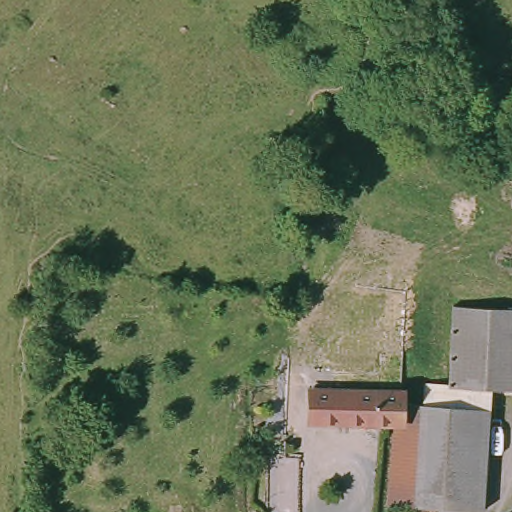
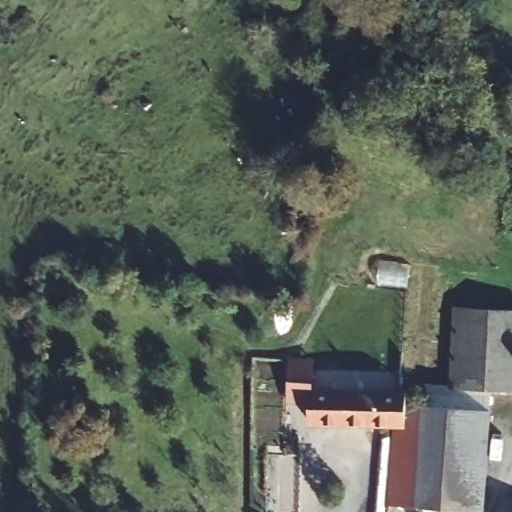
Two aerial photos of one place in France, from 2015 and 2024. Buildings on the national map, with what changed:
unchanged [(445,383),(447,300),(512,300),(512,392),(471,392),(472,410),(426,410),(425,382),(445,383)]
unchanged [(372,425),(321,426),(320,393),(414,392),(416,410),(416,423),(403,424),(372,425)]
unchanged [(416,423),(416,410),(426,410),(472,410),(472,512),(405,512),(403,424),(416,423)]

